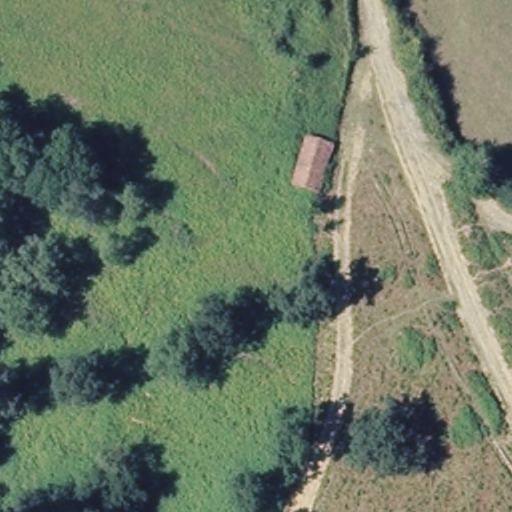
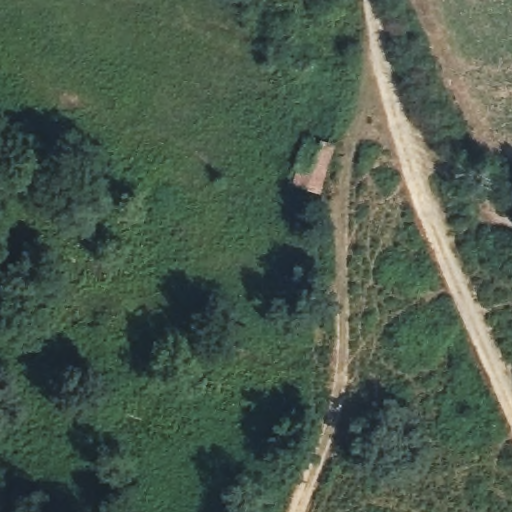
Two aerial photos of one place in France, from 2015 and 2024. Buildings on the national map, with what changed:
unchanged [(318,191),(300,181),(316,143),(336,152),(318,191)]

